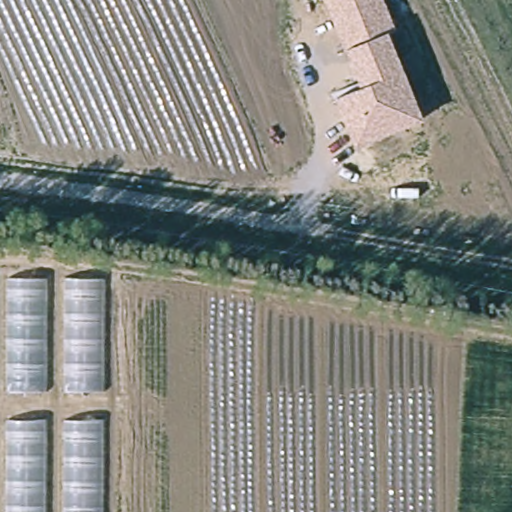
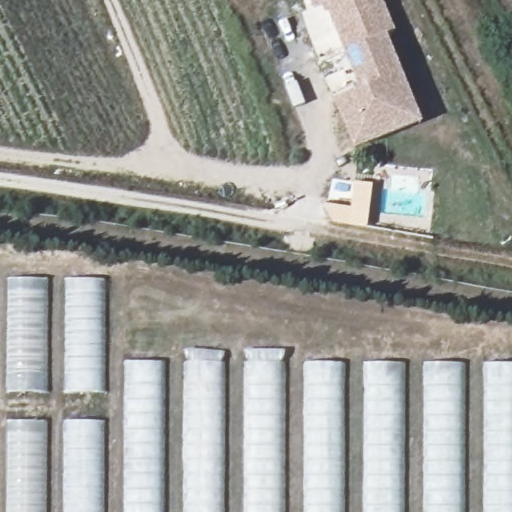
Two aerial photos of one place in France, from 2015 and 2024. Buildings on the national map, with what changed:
unchanged [(387,34),(423,121),(355,149),(334,100),(358,90),(322,0),(383,0),(395,30),(387,34)]
unchanged [(106,280),(105,512),(0,512),(0,274),(106,280)]
new [(125,362),(512,363),(512,512),(125,512),(125,362)]

